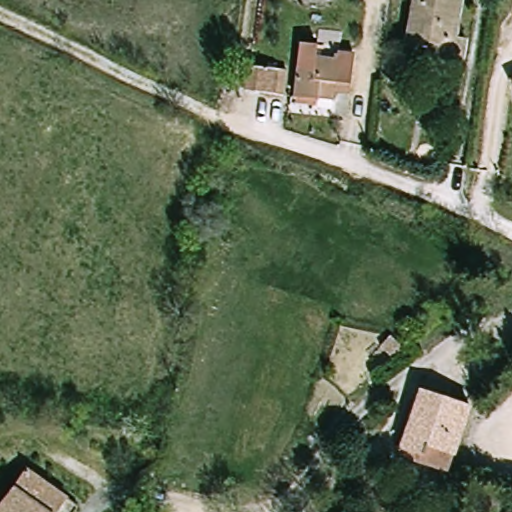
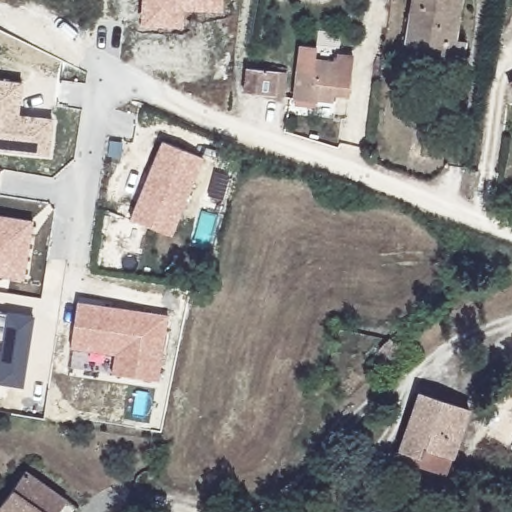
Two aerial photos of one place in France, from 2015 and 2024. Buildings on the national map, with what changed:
new [(223,11),(185,10),(184,26),(141,26),(142,0),(223,0),(223,11)]
unchanged [(439,44),(422,41),(428,0),(473,0),(467,38),(477,40),(473,63),(452,60),(437,58),(439,44)]
unchanged [(314,106),(298,104),(305,52),(338,56),(339,44),(355,46),(349,96),(347,110),(314,106)]
unchanged [(276,70),(274,96),(244,94),(245,68),(276,70)]
new [(23,81),(19,114),(53,117),(50,155),(0,150),(0,79),(23,81)]
new [(172,236),(130,219),(162,141),(204,158),(172,236)]
new [(34,220),(24,279),(0,276),(0,215),(34,220)]
new [(168,316),(158,381),(68,367),(78,302),(168,316)]
new [(8,313),(8,312),(35,316),(23,387),(0,384),(0,359),(3,340),(0,340),(0,312),(8,313)]
unchanged [(397,452),(403,438),(429,386),(475,409),(454,454),(444,475),(397,452)]
unchanged [(0,500),(0,470),(15,474),(72,491),(67,508),(58,506),(56,512),(3,512),(7,501),(0,500)]

